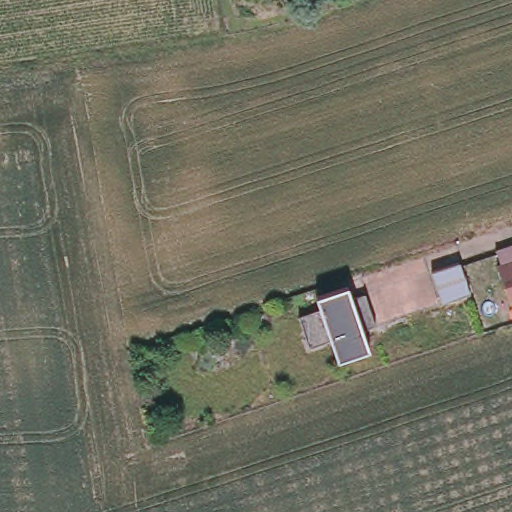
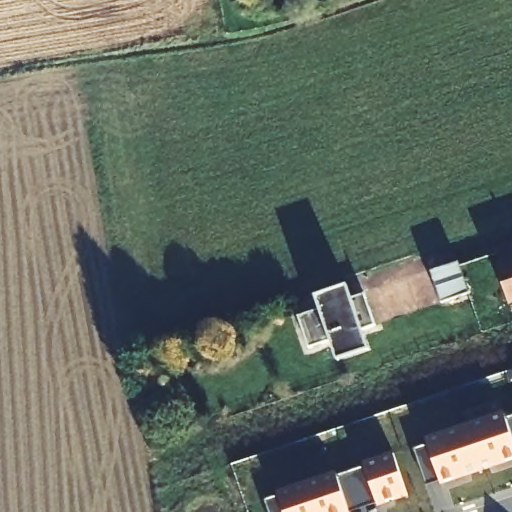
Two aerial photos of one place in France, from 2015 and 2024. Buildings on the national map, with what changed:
unchanged [(512,303),(510,304),(494,249),(512,243),(512,303)]
unchanged [(319,307),(316,298),(348,287),(351,297),(364,293),(373,322),(361,327),(367,349),(338,360),(329,337),(309,346),(299,315),(319,307)]
new [(414,450),(429,445),(427,440),(505,412),(507,418),(512,416),(512,460),(442,484),(441,481),(427,486),(414,450)]
new [(278,492),(336,472),(337,475),(364,465),(364,463),(394,453),(409,495),(378,505),(377,503),(350,512),(269,512),(264,500),(279,495),(278,492)]

